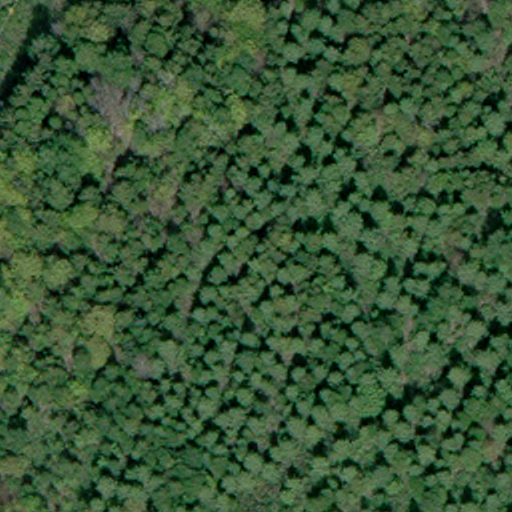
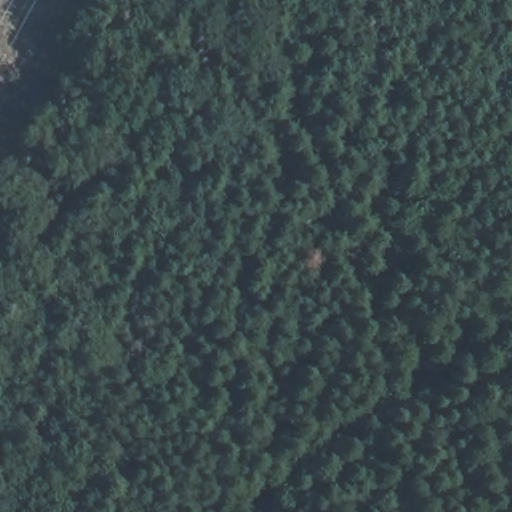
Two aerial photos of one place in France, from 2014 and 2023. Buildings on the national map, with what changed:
[]

